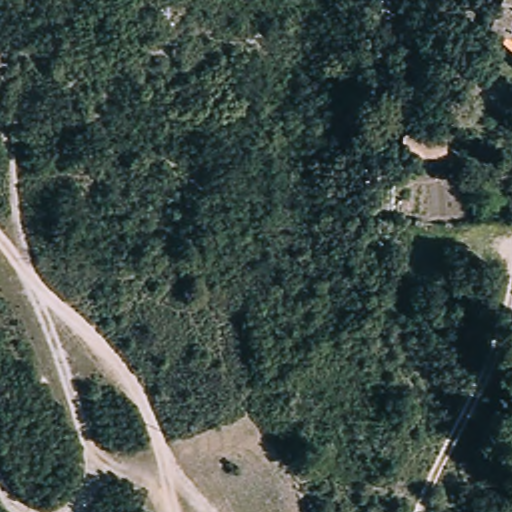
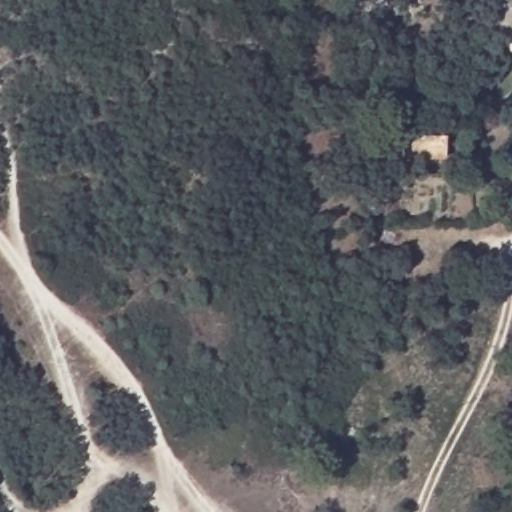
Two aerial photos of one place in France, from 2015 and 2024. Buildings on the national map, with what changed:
unchanged [(503,0),(512,0),(512,42),(487,34),(503,0)]
unchanged [(434,158),(398,151),(407,126),(448,133),(434,158)]

